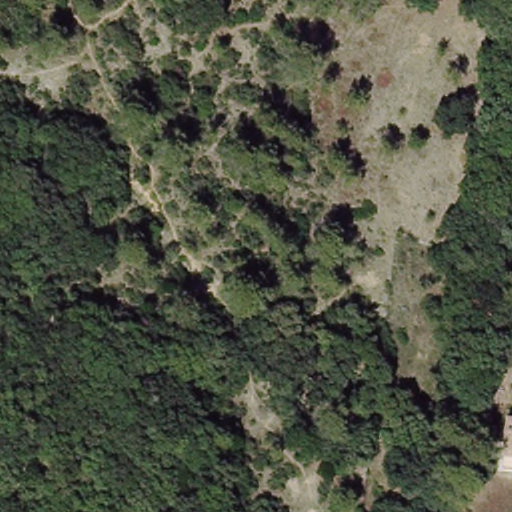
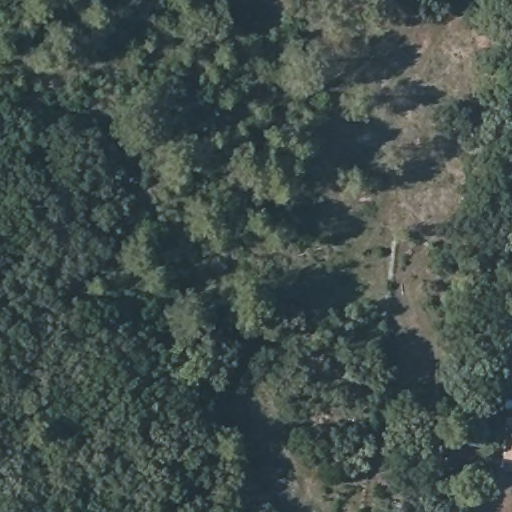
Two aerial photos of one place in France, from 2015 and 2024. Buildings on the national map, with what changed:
unchanged [(511,460),(500,458),(503,421),(512,422),(512,460),(511,460)]

